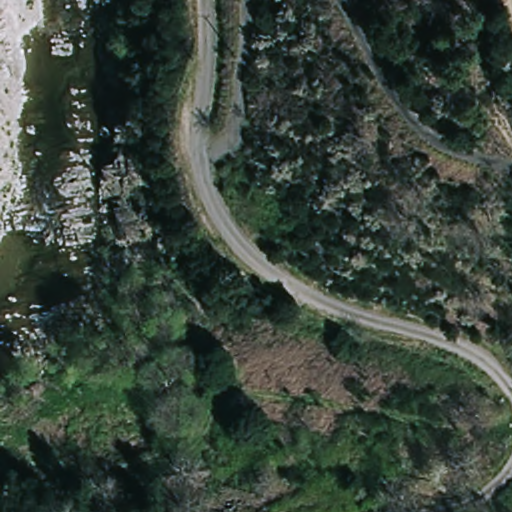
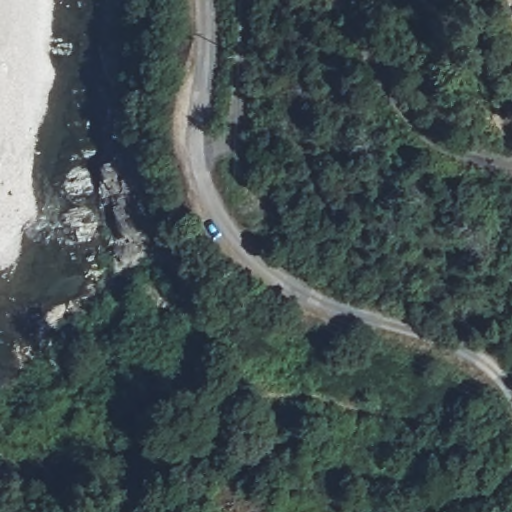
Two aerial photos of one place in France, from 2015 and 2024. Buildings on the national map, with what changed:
[]

